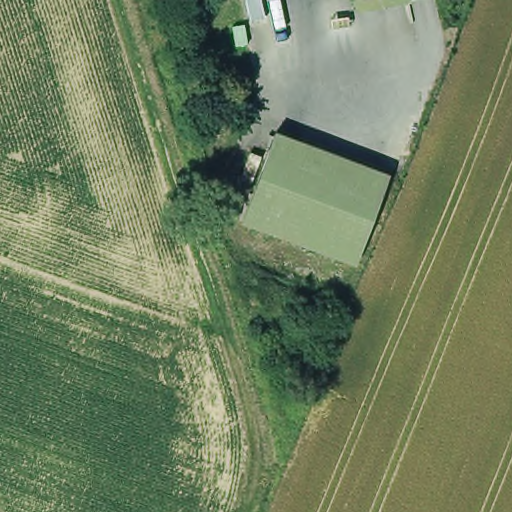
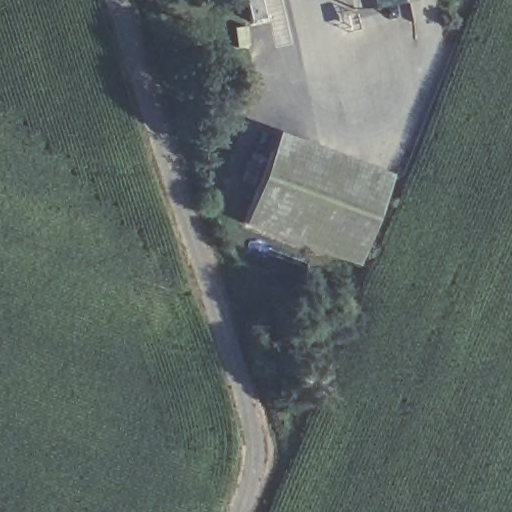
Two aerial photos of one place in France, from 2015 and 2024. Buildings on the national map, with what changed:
unchanged [(348,0),(407,0),(349,10),(348,0)]
unchanged [(241,224),(276,131),(390,171),(356,270),(241,224)]

